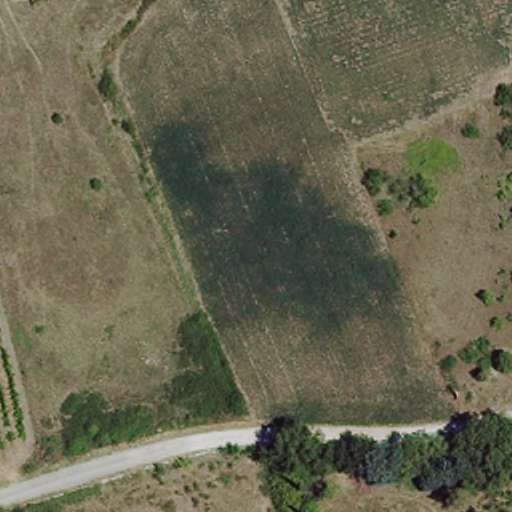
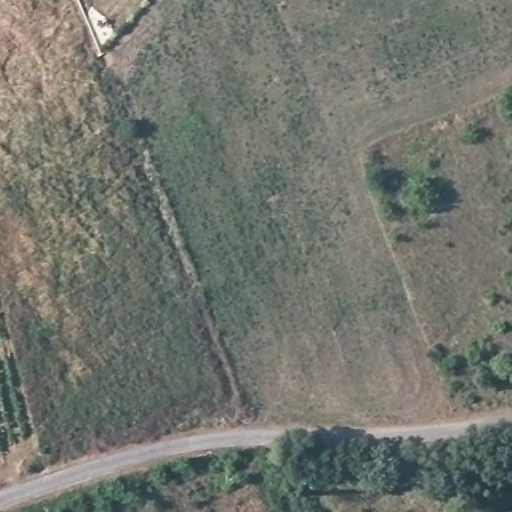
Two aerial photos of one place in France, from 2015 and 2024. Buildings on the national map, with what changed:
[]

